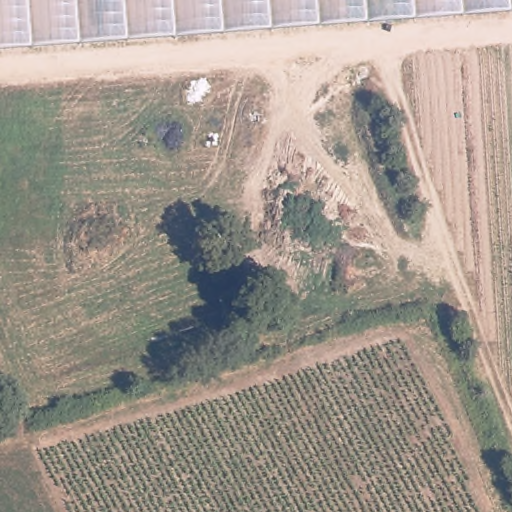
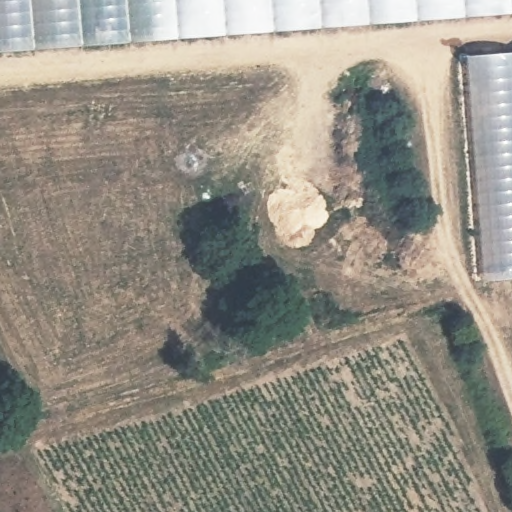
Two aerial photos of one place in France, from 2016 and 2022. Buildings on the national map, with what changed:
unchanged [(0,51),(0,0),(512,0),(512,13),(0,51)]
new [(481,281),(462,55),(512,51),(512,279),(481,281)]
demolished [(213,80),(256,81),(262,153),(216,158),(213,80)]

